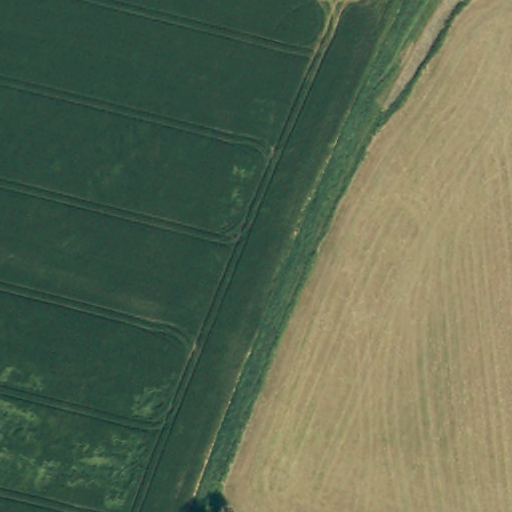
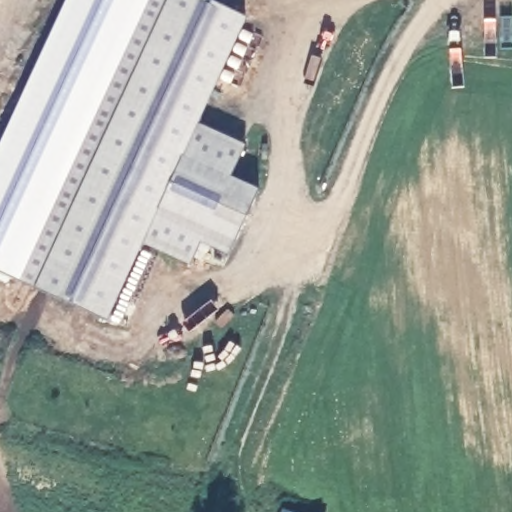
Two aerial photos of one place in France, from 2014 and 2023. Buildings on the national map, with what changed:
new [(102,49),(122,0),(123,0),(136,5),(139,0),(204,0),(246,19),(197,123),(245,146),(229,177),(258,190),(227,256),(200,242),(190,266),(143,243),(106,323),(12,278),(114,55),(102,49)]
new [(283,509),(291,512),(282,512),(283,509)]

